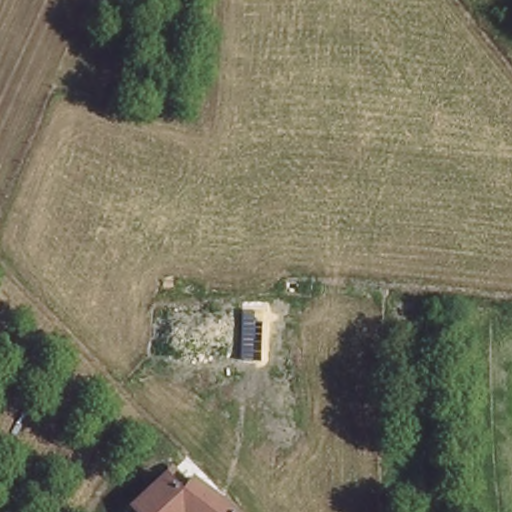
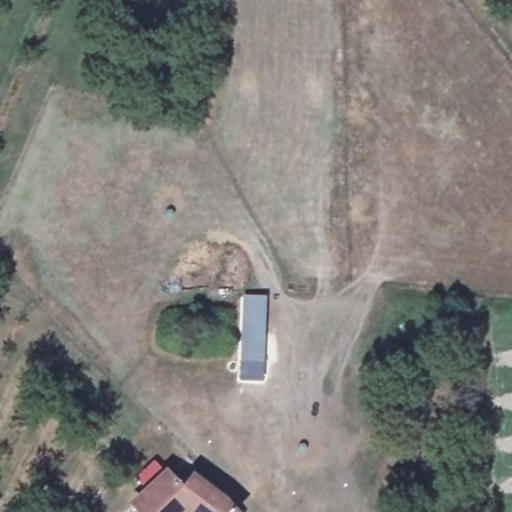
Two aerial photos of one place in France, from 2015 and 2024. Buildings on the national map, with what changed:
new [(263,360),(240,359),(244,295),(267,296),(263,360)]
unchanged [(138,512),(131,504),(173,468),(191,480),(199,471),(240,512),(138,512)]

